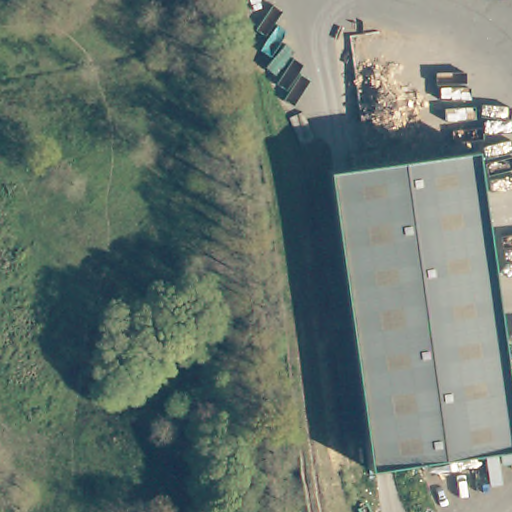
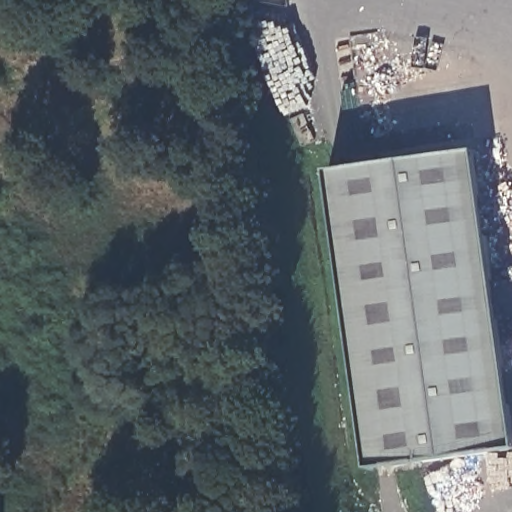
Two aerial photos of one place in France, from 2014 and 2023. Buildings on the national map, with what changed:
unchanged [(512,435),(512,454),(365,473),(325,175),(474,155),(512,435)]

